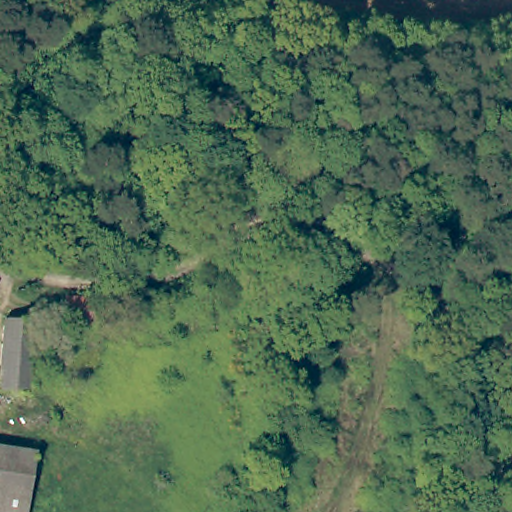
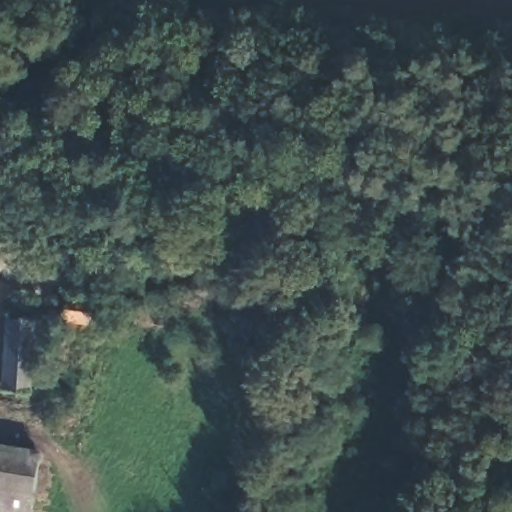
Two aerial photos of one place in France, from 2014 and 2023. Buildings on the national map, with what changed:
unchanged [(66,296),(100,299),(97,324),(64,321),(66,296)]
unchanged [(0,324),(33,326),(28,396),(0,394),(0,331),(0,324)]
unchanged [(36,457),(28,512),(0,512),(0,451),(36,457)]

